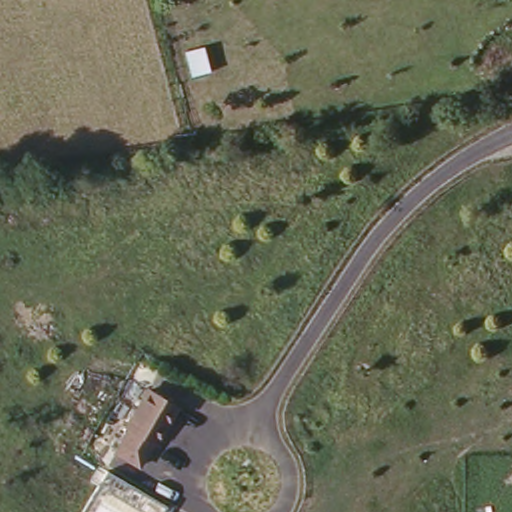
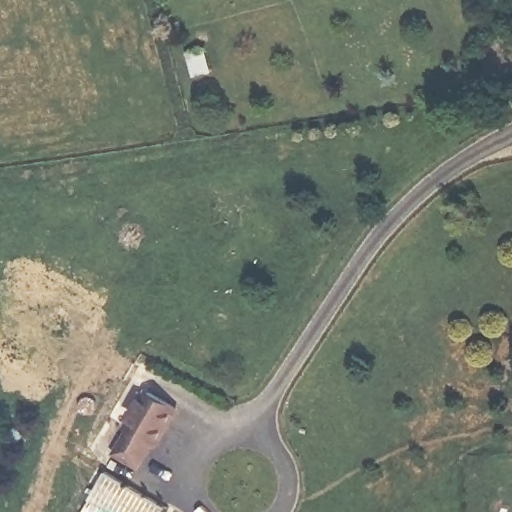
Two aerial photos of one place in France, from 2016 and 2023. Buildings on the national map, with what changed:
unchanged [(154,390),(176,402),(139,467),(116,450),(154,390)]

